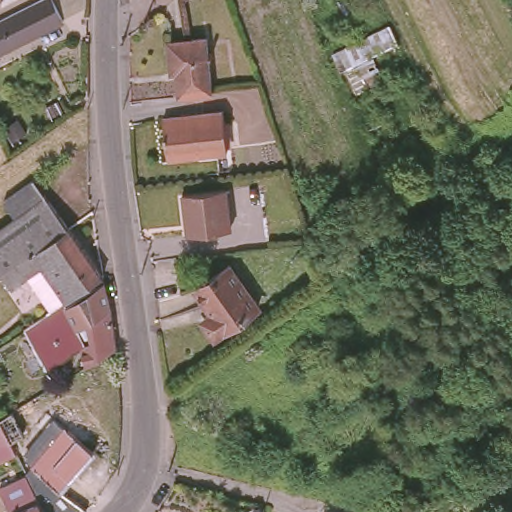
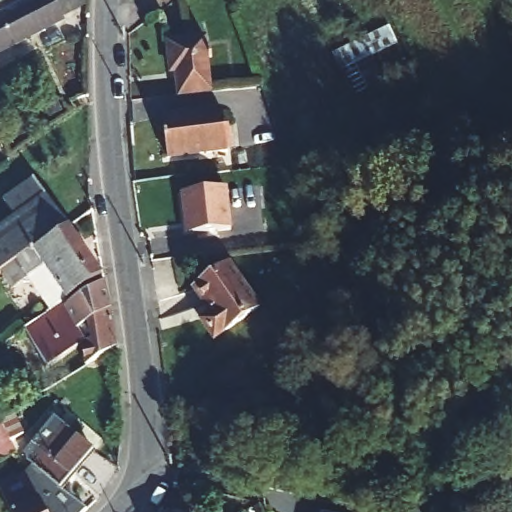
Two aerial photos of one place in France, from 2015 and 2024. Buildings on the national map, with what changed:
unchanged [(0,0),(3,7),(0,9),(0,0)]
unchanged [(46,7),(58,31),(0,60),(0,30),(46,7)]
unchanged [(390,34),(400,52),(385,60),(393,84),(367,95),(356,76),(341,84),(330,62),(390,34)]
unchanged [(175,92),(175,70),(170,70),(169,39),(205,39),(207,90),(175,92)]
unchanged [(222,116),(224,154),(164,157),(163,119),(222,116)]
unchanged [(11,219),(0,202),(0,201),(28,180),(63,229),(0,275),(0,227),(11,219)]
unchanged [(179,192),(223,189),(225,226),(182,230),(179,192)]
unchanged [(59,302),(45,311),(24,280),(8,290),(0,278),(0,275),(63,229),(98,277),(59,302)]
unchanged [(202,315),(212,308),(195,285),(229,260),(254,298),(256,301),(213,332),(211,328),(202,315)]
unchanged [(45,311),(59,302),(62,307),(100,284),(108,319),(112,350),(92,360),(82,366),(75,351),(42,369),(20,328),(45,311)]
unchanged [(12,421),(23,445),(10,451),(17,466),(0,474),(0,428),(12,421)]
unchanged [(35,500),(38,493),(34,488),(38,483),(34,479),(40,471),(37,468),(47,455),(32,441),(47,422),(95,463),(59,506),(62,512),(40,512),(35,500)]
unchanged [(0,501),(0,499),(27,486),(35,500),(40,512),(6,512),(0,501)]

